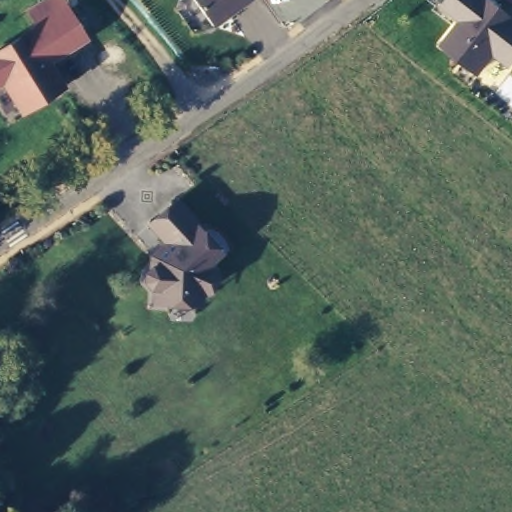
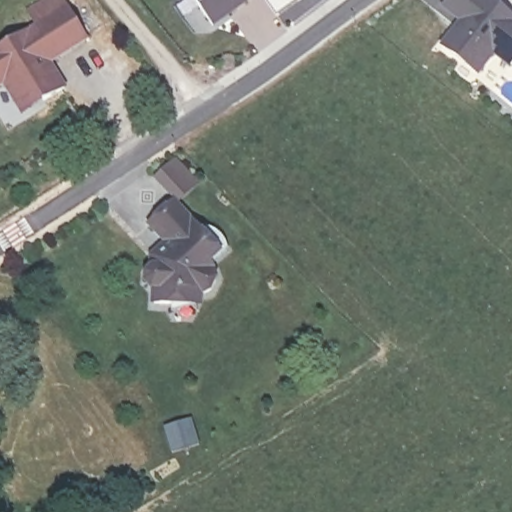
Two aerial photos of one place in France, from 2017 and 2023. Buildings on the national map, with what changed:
unchanged [(193,0),(250,0),(210,27),(193,0)]
unchanged [(512,68),(511,69),(494,56),(477,76),(438,43),(453,22),(437,9),(445,0),(493,0),(512,15),(512,68)]
unchanged [(20,111),(0,81),(0,82),(0,44),(26,28),(29,34),(70,6),(89,36),(48,60),(65,87),(20,111)]
unchanged [(224,252),(211,266),(222,278),(205,295),(205,306),(152,303),(153,292),(143,280),(144,271),(152,265),(147,257),(162,242),(146,224),(175,199),(224,252)]

